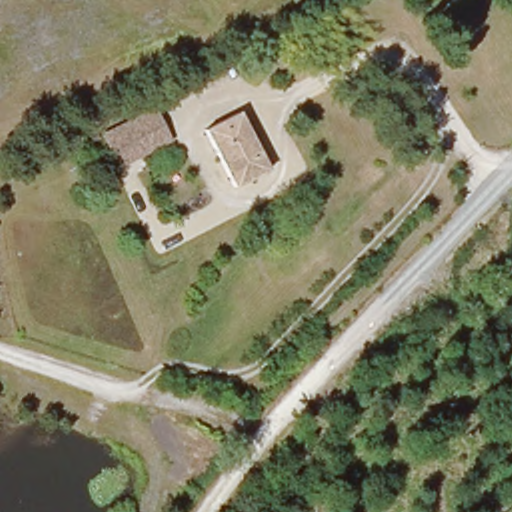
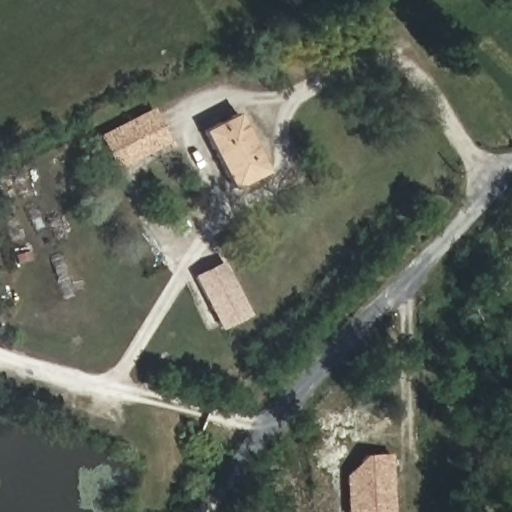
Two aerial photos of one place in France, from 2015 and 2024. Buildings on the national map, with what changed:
unchanged [(97,127),(132,109),(151,99),(167,134),(148,143),(114,161),(97,127)]
unchanged [(232,183),(203,123),(238,107),(267,166),(232,183)]
new [(195,276),(224,261),(251,314),(222,329),(195,276)]
new [(394,512),(346,512),(346,477),(368,455),(392,454),(394,512)]

